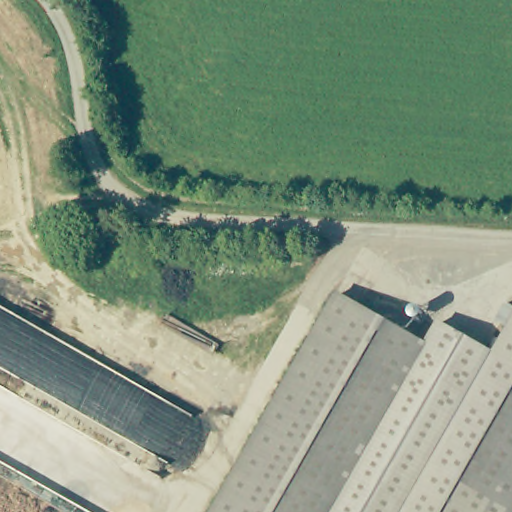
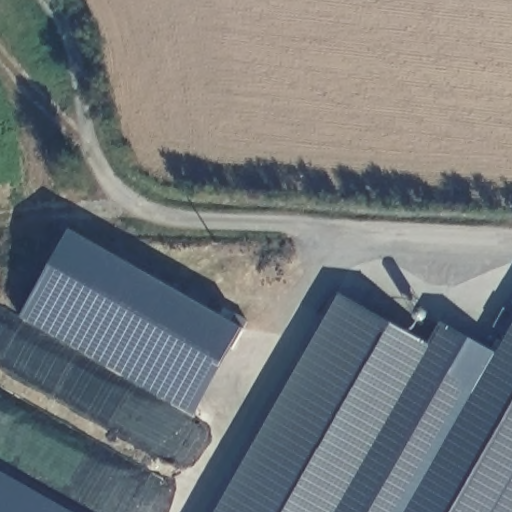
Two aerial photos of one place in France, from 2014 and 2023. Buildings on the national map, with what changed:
new [(245,327),(197,413),(23,315),(69,229),(245,327)]
unchanged [(430,340),(443,318),(497,349),(512,323),(512,512),(215,512),(341,289),(430,340)]
new [(3,461),(0,469),(0,460),(3,461)]
new [(73,512),(0,512),(0,471),(73,512)]

